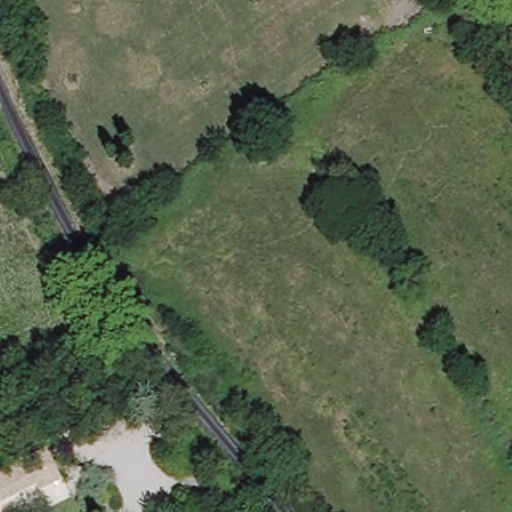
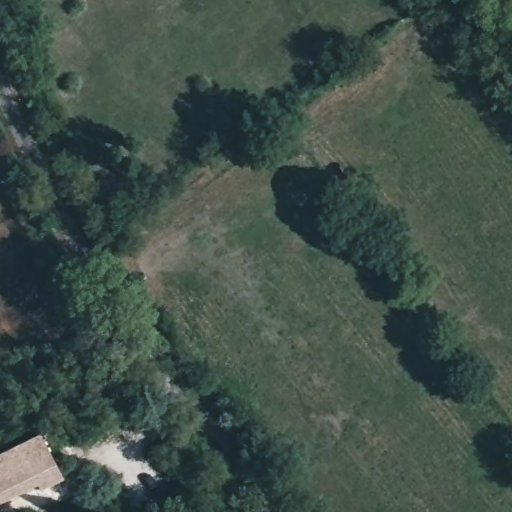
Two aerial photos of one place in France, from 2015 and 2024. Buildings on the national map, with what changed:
new [(44,443),(64,479),(34,492),(33,489),(0,505),(0,460),(44,443)]
demolished [(21,465),(33,489),(0,505),(0,476),(21,465)]

